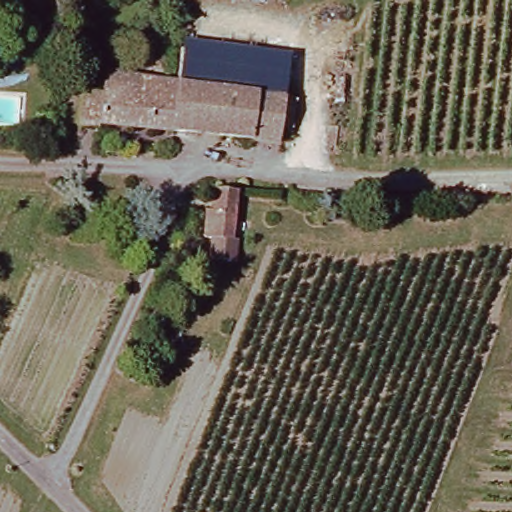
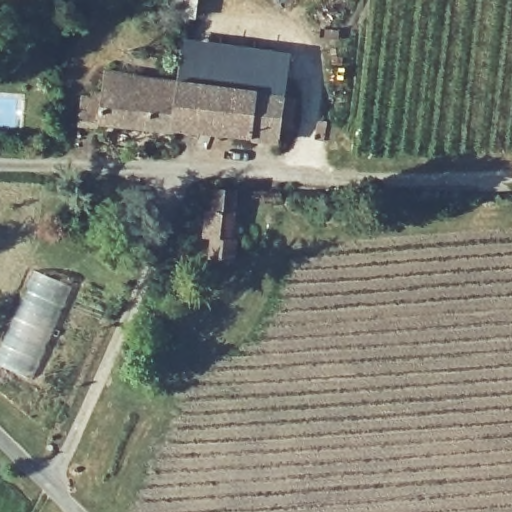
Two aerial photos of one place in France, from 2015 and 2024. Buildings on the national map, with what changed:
unchanged [(102,127),(102,131),(82,130),(84,100),(96,101),(97,94),(108,95),(110,71),(172,75),(176,48),(285,61),(275,143),(102,127)]
unchanged [(207,239),(198,237),(200,210),(209,212),(212,190),(234,192),(230,240),(235,240),(232,262),(205,259),(207,239)]
new [(31,268),(73,286),(32,380),(0,367),(0,338),(16,305),(31,268)]

